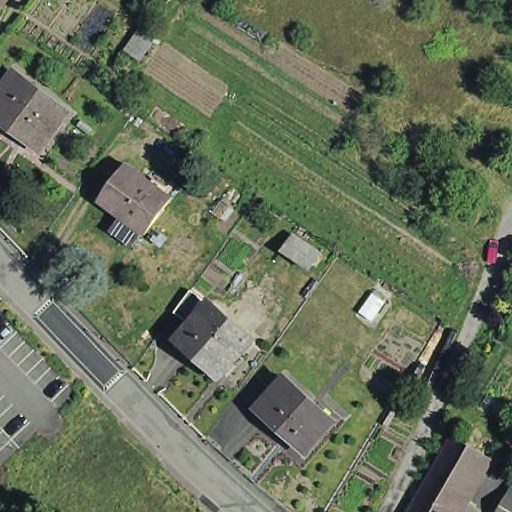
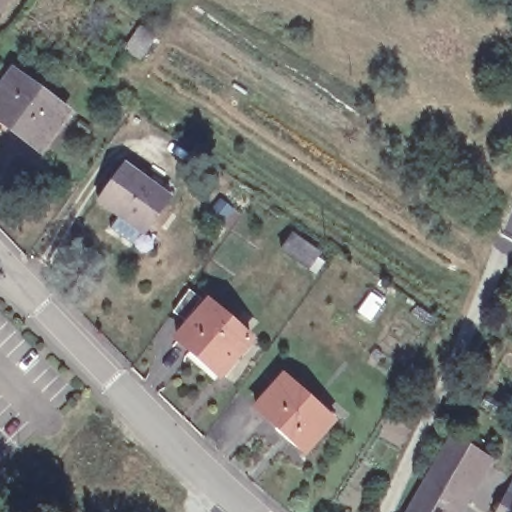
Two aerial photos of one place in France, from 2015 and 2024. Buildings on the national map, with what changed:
unchanged [(0,0),(3,0),(0,4),(0,0)]
unchanged [(144,28),(157,37),(141,61),(127,52),(144,28)]
unchanged [(67,103),(41,140),(11,119),(7,124),(0,119),(0,82),(14,63),(67,103)]
unchanged [(99,196),(125,160),(171,193),(146,228),(145,230),(142,228),(132,242),(111,226),(121,212),(99,196)]
unchanged [(319,250),(309,264),(282,248),(291,232),(319,250)]
unchanged [(372,292),(386,301),(371,324),(357,315),(372,292)]
unchanged [(210,305),(192,328),(181,319),(197,296),(210,305)]
unchanged [(260,346),(228,381),(187,343),(218,309),(260,346)]
unchanged [(305,449),(256,404),(283,372),(332,417),(305,449)]
unchanged [(413,511),(434,477),(442,463),(457,435),(487,454),(481,465),(472,479),(464,494),(454,512),(413,512),(413,511)]
unchanged [(512,490),(512,512),(498,512),(512,490)]

